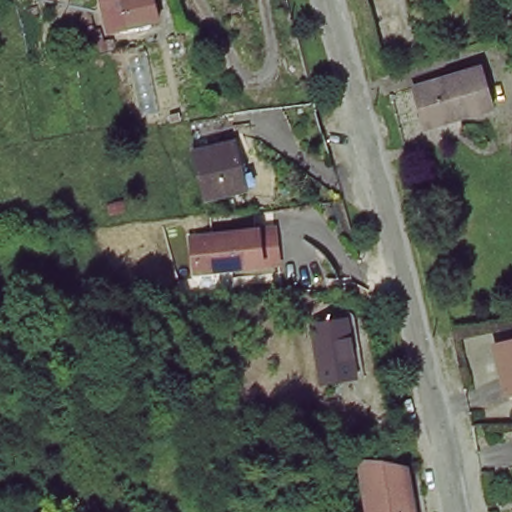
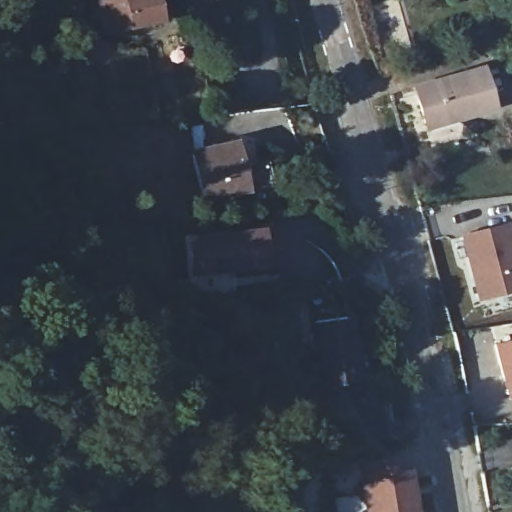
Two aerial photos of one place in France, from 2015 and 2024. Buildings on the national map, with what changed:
unchanged [(161,26),(113,38),(104,7),(118,4),(118,0),(155,0),(161,26)]
unchanged [(480,70),(492,108),(458,116),(456,113),(424,121),(415,86),(480,70)]
unchanged [(198,142),(239,138),(245,192),(204,197),(198,142)]
new [(512,239),(512,291),(476,299),(459,233),(507,220),(512,239)]
unchanged [(276,230),(278,265),(193,270),(191,234),(276,230)]
unchanged [(344,317),(364,374),(333,384),(313,328),(344,317)]
unchanged [(512,339),(512,390),(508,391),(496,343),(512,339)]
unchanged [(373,459),(403,468),(412,512),(364,512),(354,460),(373,459)]

